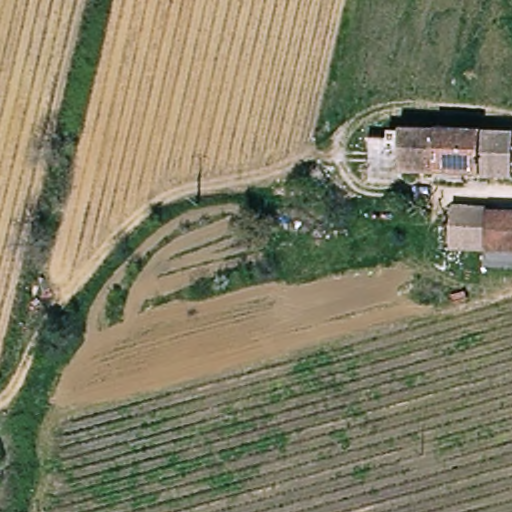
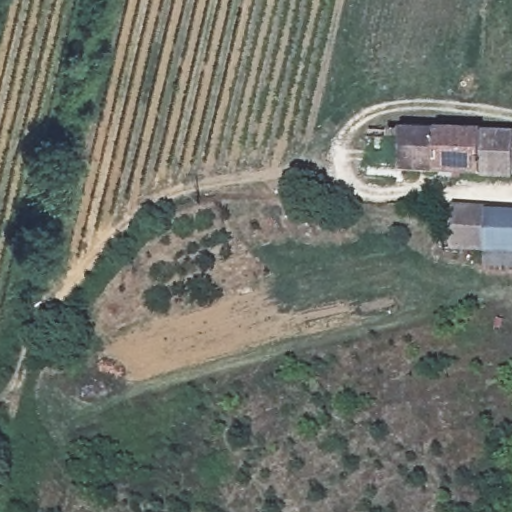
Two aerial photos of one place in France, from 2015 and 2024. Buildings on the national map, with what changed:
unchanged [(411,129),(512,132),(512,176),(409,171),(410,158),(411,133),(411,129)]
unchanged [(379,182),(381,141),(411,133),(410,158),(399,157),(398,183),(379,182)]
unchanged [(512,216),(512,249),(485,247),(450,244),(451,224),(456,224),(459,206),(494,208),(495,215),(512,216)]
unchanged [(512,249),(512,270),(484,268),(485,247),(512,249)]

